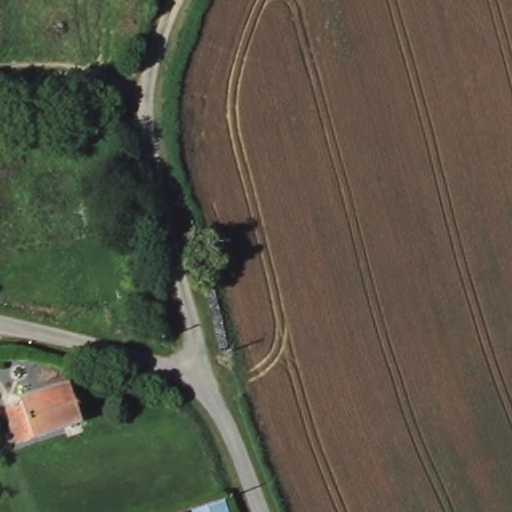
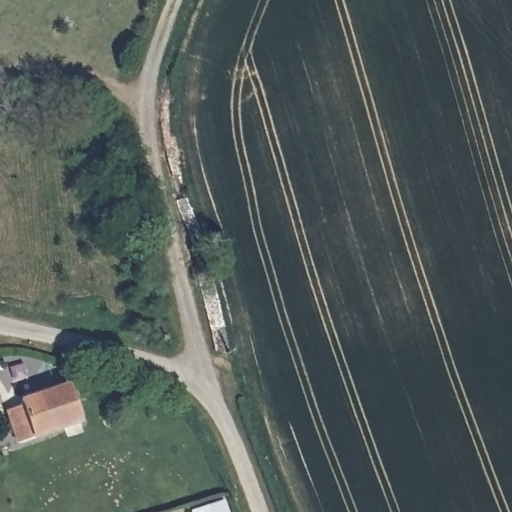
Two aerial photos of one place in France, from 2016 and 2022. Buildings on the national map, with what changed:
unchanged [(45,393),(71,386),(82,423),(55,430),(45,393)]
unchanged [(17,440),(9,408),(26,403),(25,398),(45,393),(55,430),(17,440)]

